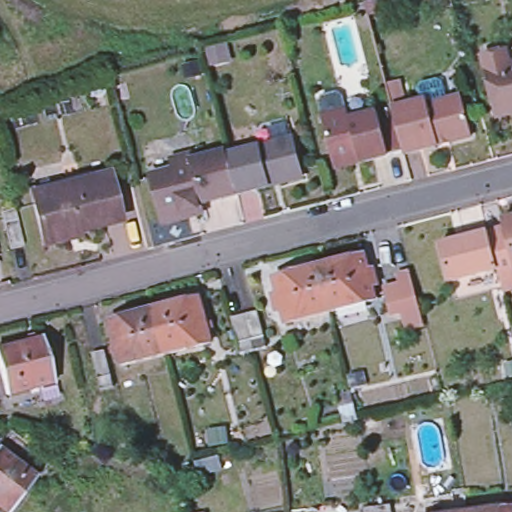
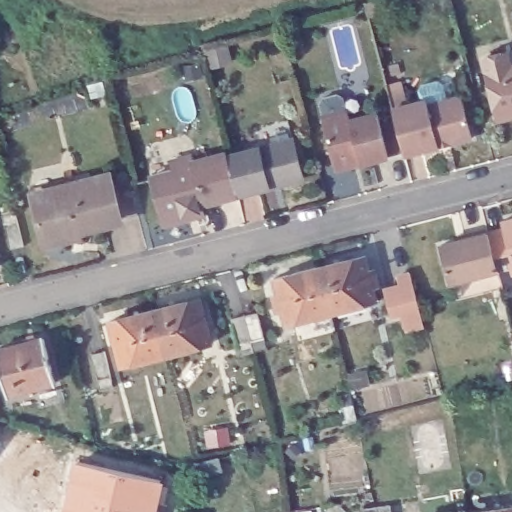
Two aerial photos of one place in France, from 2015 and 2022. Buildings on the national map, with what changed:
unchanged [(483,62),(506,56),(512,55),(512,118),(498,122),(483,62)]
unchanged [(335,172),(334,167),(325,130),(320,115),(316,98),(341,92),(346,109),(348,119),(375,112),(386,155),(346,165),(349,169),(335,172)]
unchanged [(475,137),(454,142),(453,138),(441,141),(442,145),(405,153),(395,107),(431,99),(432,102),(465,95),(475,137)]
unchanged [(298,186),(283,190),(279,187),(268,190),(269,194),(236,201),(226,162),(233,160),(232,153),(260,147),(256,132),(287,125),(292,146),(300,180),(298,186)]
unchanged [(226,162),(236,201),(198,210),(200,215),(184,219),(180,225),(167,227),(160,222),(150,180),(174,174),(171,164),(190,160),(192,166),(225,157),(226,162)]
unchanged [(121,223),(68,236),(70,240),(45,246),(35,202),(33,197),(53,192),(111,177),(121,223)]
unchanged [(500,220),(512,216),(512,274),(498,277),(495,268),(485,230),(502,226),(500,220)]
unchanged [(26,255),(15,258),(5,222),(17,219),(26,255)]
unchanged [(485,230),(495,268),(447,280),(438,245),(456,240),(455,236),(485,229),(485,230)]
unchanged [(316,265),(360,252),(364,266),(367,265),(372,283),(368,284),(371,297),(327,309),(316,265)]
unchanged [(327,309),(282,322),(279,308),(275,309),(271,293),(275,292),(271,277),(316,265),(327,309)]
unchanged [(415,307),(387,314),(380,286),(395,282),(393,272),(405,270),(415,307)]
unchanged [(156,313),(200,301),(211,347),(168,358),(156,313)]
unchanged [(168,358),(121,370),(111,326),(156,313),(168,358)]
unchanged [(234,319),(245,316),(256,313),(265,348),(255,352),(242,355),(234,319)]
unchanged [(42,340),(55,383),(5,397),(0,377),(0,351),(42,340)]
unchanged [(103,355),(113,390),(100,393),(90,358),(103,355)]
demolished [(9,512),(6,512),(0,507),(0,448),(36,476),(9,512)]
new [(157,512),(62,512),(72,463),(163,485),(157,512)]
unchanged [(394,512),(365,512),(365,510),(377,508),(380,508),(393,506),(394,512)]
unchanged [(511,512),(475,512),(510,508),(511,512)]

